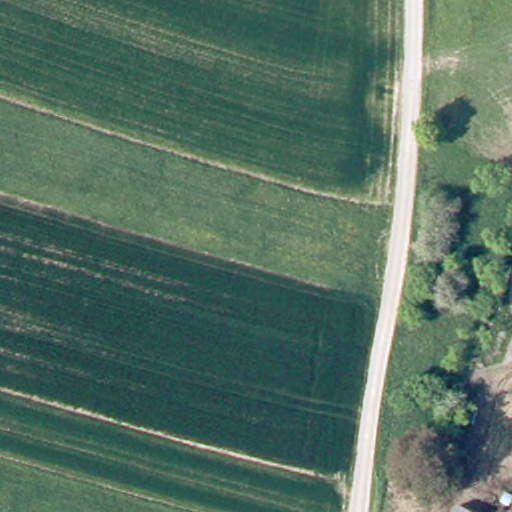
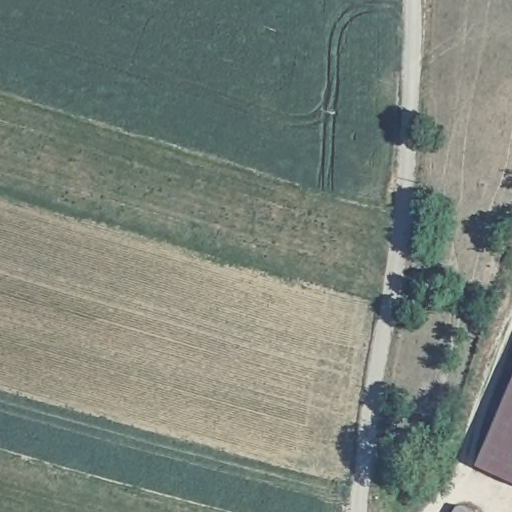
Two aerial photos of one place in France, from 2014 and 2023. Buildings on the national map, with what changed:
new [(512,380),(512,479),(477,465),(512,380)]
unchanged [(469,502),(488,509),(486,512),(464,512),(469,502)]

